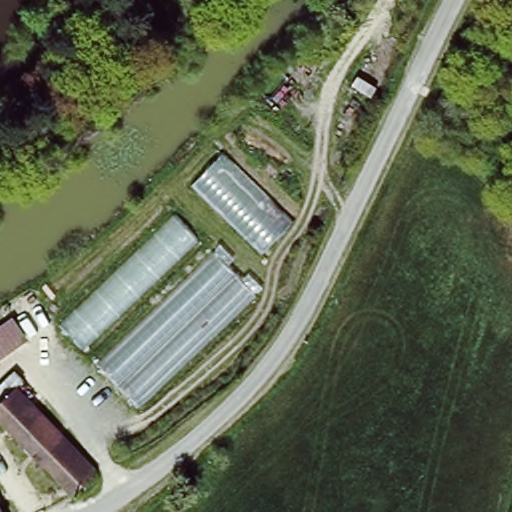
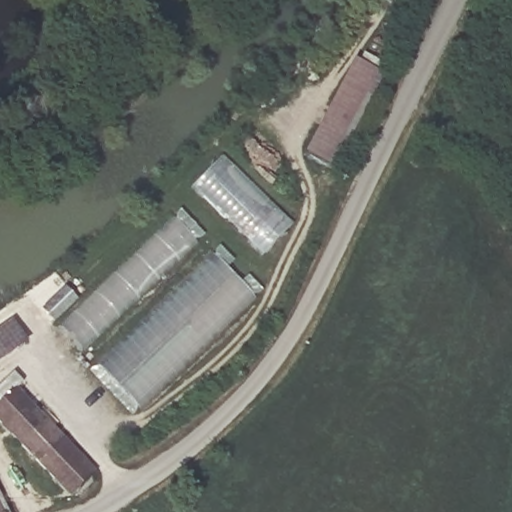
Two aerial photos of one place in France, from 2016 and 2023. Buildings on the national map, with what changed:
new [(360,59),(363,61),(367,52),(385,62),(380,70),(386,73),(336,167),(310,153),(360,59)]
unchanged [(192,183),(220,153),(292,224),(265,253),(192,183)]
unchanged [(180,207),(203,234),(74,357),(50,332),(180,207)]
unchanged [(215,257),(251,294),(137,405),(99,363),(215,257)]
unchanged [(0,326),(12,317),(28,340),(0,361),(0,326)]
unchanged [(73,498),(0,426),(0,391),(6,384),(95,476),(73,498)]

